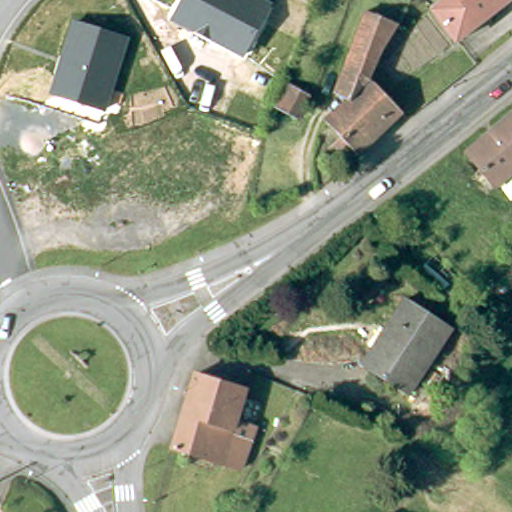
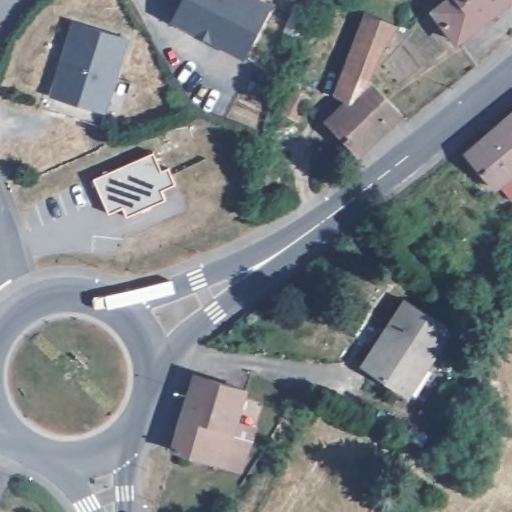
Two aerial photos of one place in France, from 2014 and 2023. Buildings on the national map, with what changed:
unchanged [(271,3),(243,58),(170,22),(182,0),(265,0),(271,3)]
unchanged [(429,5),(435,0),(500,0),(453,36),(429,5)]
unchanged [(351,145),(342,151),(336,142),(343,137),(327,118),(350,95),(335,87),(364,8),(397,22),(380,49),(371,75),(403,108),(357,151),(351,145)]
unchanged [(130,37),(105,112),(50,95),(71,21),(130,37)]
unchanged [(290,86),(308,97),(296,118),(278,108),(290,86)]
unchanged [(487,180),(481,173),(478,176),(471,168),(480,160),(466,144),(512,105),(512,190),(507,193),(505,190),(495,177),(492,175),(487,180)]
new [(162,169),(168,167),(176,184),(162,190),(166,200),(126,218),(121,207),(107,213),(92,178),(154,151),(162,169)]
unchanged [(362,355),(405,290),(450,320),(407,385),(362,355)]
unchanged [(196,370),(245,385),(234,421),(253,427),(242,463),(185,447),(174,444),(196,370)]

